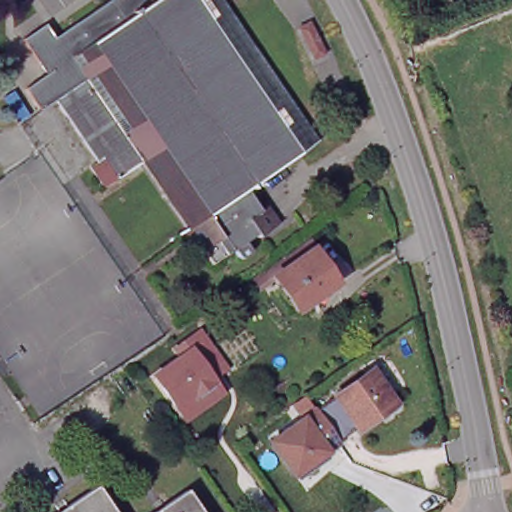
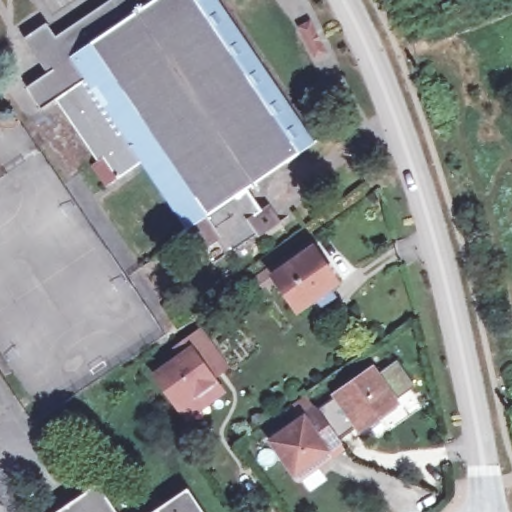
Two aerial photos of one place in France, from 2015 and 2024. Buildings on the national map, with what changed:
unchanged [(137,174),(129,179),(92,204),(78,181),(84,177),(95,169),(55,109),(42,117),(29,125),(15,103),(35,89),(12,55),(34,40),(43,53),(52,47),(119,1),(118,0),(190,0),(192,1),(300,161),(232,206),(247,227),(250,225),(261,243),(245,255),(243,251),(232,258),(237,266),(236,270),(235,271),(232,273),(229,275),(222,266),(218,267),(200,280),(190,266),(175,246),(182,240),(175,230),(145,185),(137,174)]
unchanged [(300,161),(192,1),(190,0),(199,0),(307,156),(300,161)]
unchanged [(312,20),(325,50),(317,54),(303,25),(312,20)]
unchanged [(302,317),(279,284),(261,297),(255,290),(318,244),(324,252),(320,255),(343,289),(302,317)]
unchanged [(183,422),(152,375),(177,357),(172,350),(200,330),(228,368),(214,378),(224,395),(183,422)]
unchanged [(302,480),(298,475),(297,475),(275,445),(373,374),(395,405),(397,408),(364,432),(362,429),(353,435),(340,444),(327,453),(331,460),(302,480)]
unchanged [(98,488),(114,512),(64,512),(98,488)]
unchanged [(189,491),(203,512),(159,512),(189,491)]

